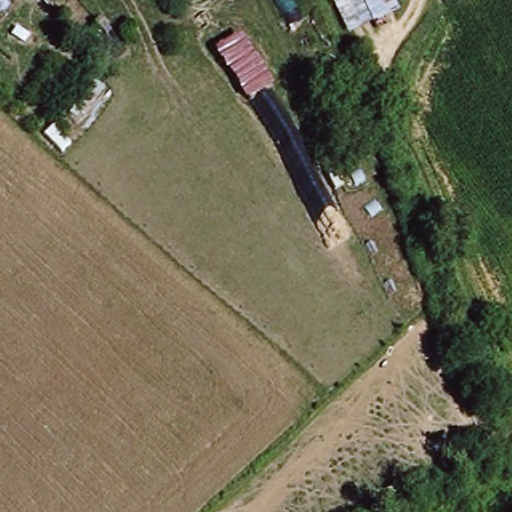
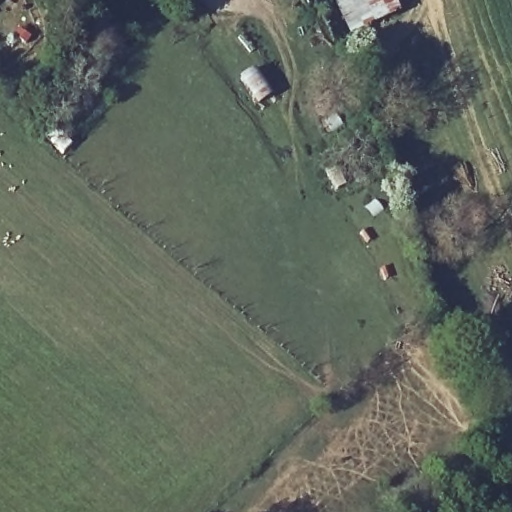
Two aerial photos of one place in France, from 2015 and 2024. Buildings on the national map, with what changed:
unchanged [(355,29),(338,0),(399,0),(401,3),(355,29)]

